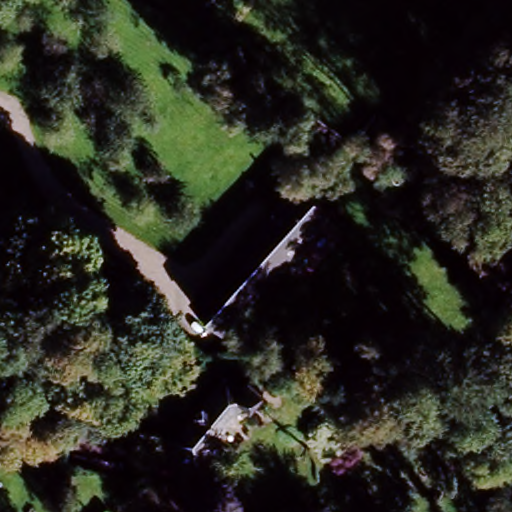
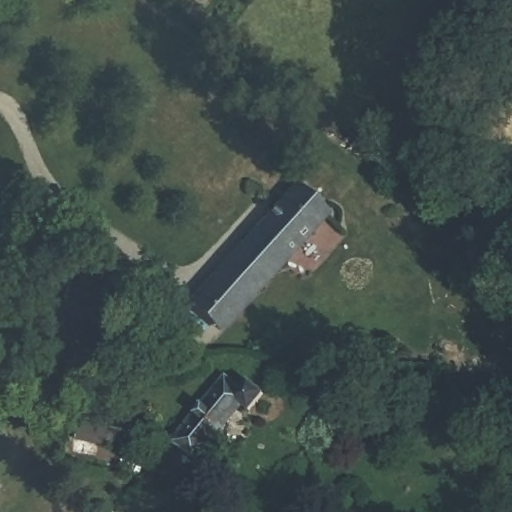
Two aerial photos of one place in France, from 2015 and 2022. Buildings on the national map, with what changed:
unchanged [(215,332),(178,302),(296,180),(328,210),(309,231),(239,307),(247,319),(236,330),(223,320),(215,332)]
unchanged [(173,441),(220,385),(233,390),(239,382),(261,401),(243,427),(227,416),(211,432),(183,479),(60,451),(68,418),(173,441)]

